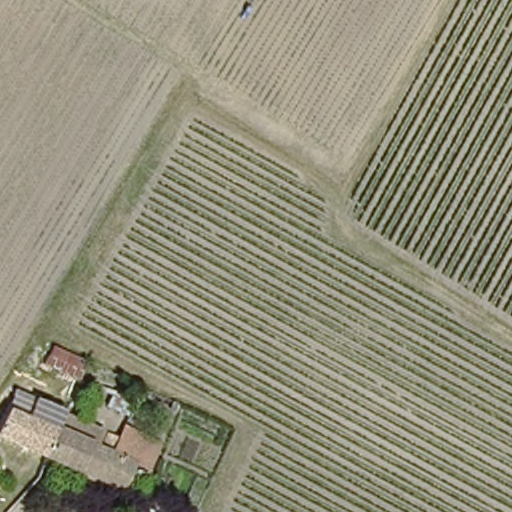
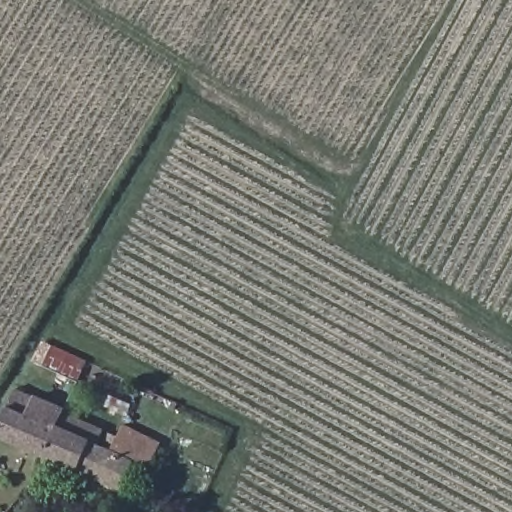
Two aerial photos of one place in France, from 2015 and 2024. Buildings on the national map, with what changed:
unchanged [(39,363),(47,342),(87,357),(80,381),(39,363)]
unchanged [(14,395),(36,404),(39,396),(46,382),(76,394),(69,409),(67,414),(49,456),(0,435),(0,427),(14,395)]
unchanged [(67,414),(101,430),(96,442),(105,447),(111,434),(120,438),(125,427),(161,443),(150,470),(139,465),(127,491),(49,456),(67,414)]

